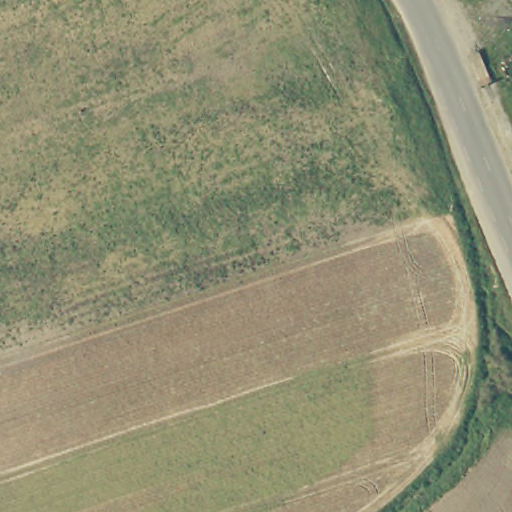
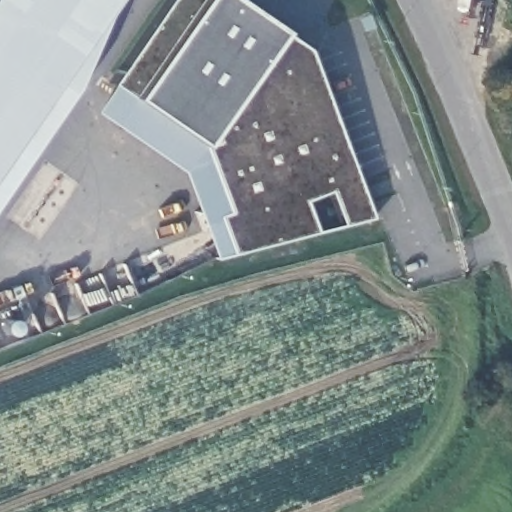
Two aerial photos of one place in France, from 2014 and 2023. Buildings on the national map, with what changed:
new [(107,15),(75,88),(0,198),(0,0),(117,0),(107,15)]
new [(279,31),(306,49),(373,217),(214,257),(179,171),(91,110),(166,0),(234,0),(279,31)]

